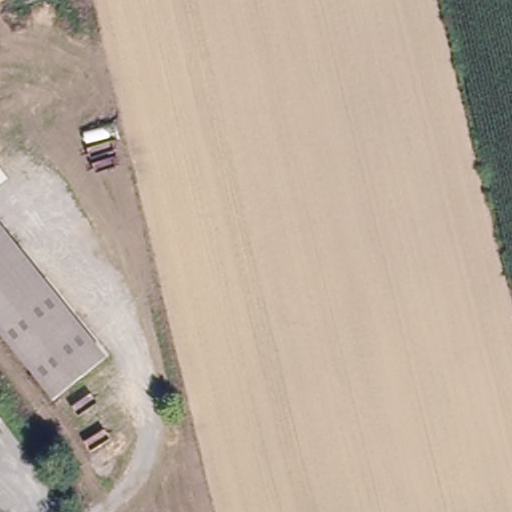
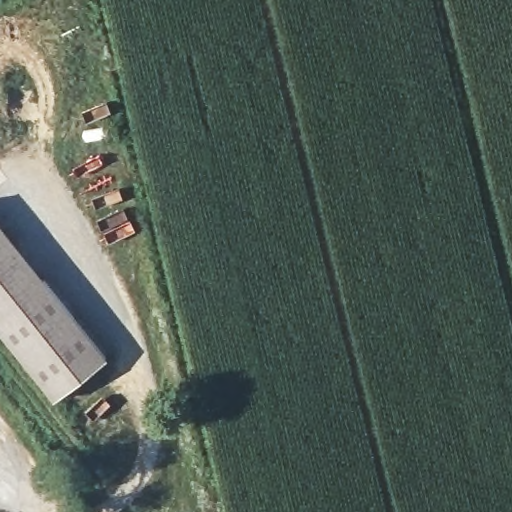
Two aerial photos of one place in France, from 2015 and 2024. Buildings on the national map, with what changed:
unchanged [(55,394),(0,325),(0,223),(104,354),(55,394)]

